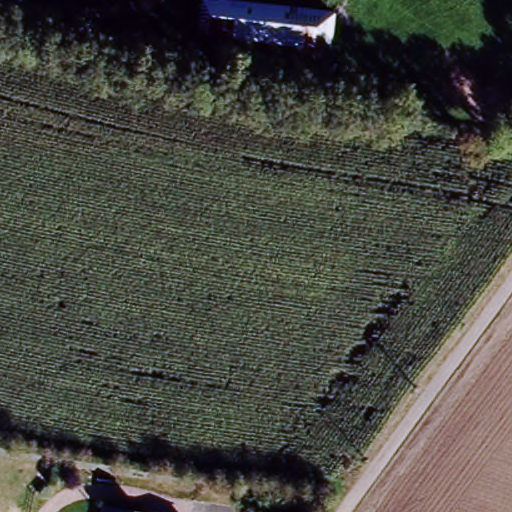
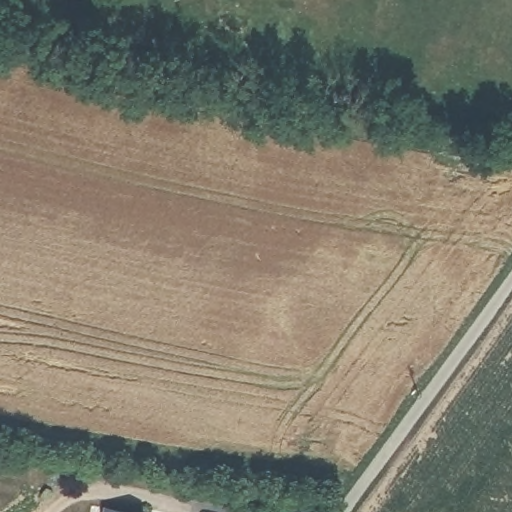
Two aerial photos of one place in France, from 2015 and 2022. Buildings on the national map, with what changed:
demolished [(329,55),(191,39),(193,0),(227,0),(333,11),(329,55)]
unchanged [(124,512),(103,512),(104,507),(124,512)]

